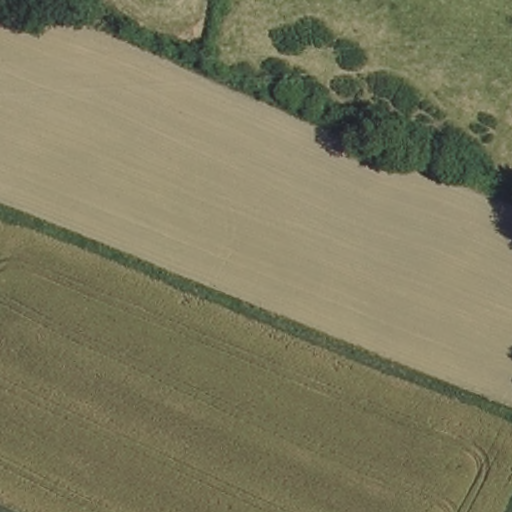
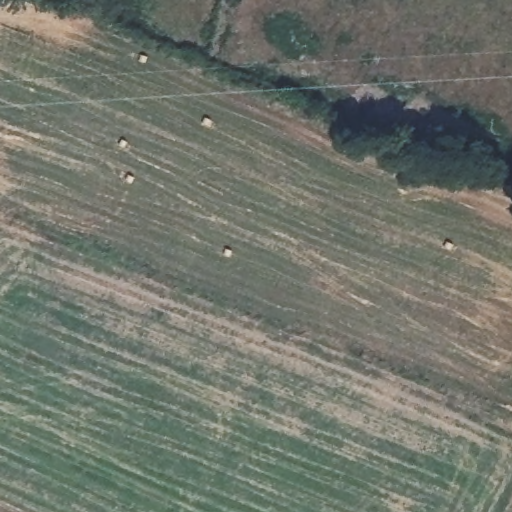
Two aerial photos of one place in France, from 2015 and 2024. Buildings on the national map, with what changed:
unchanged [(297,85),(290,100),(255,84),(262,69),(297,85)]

